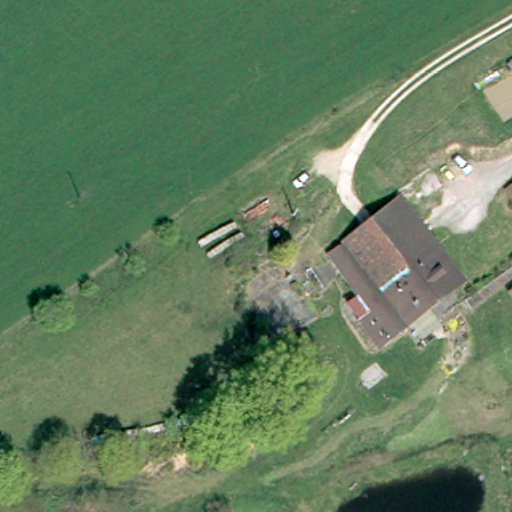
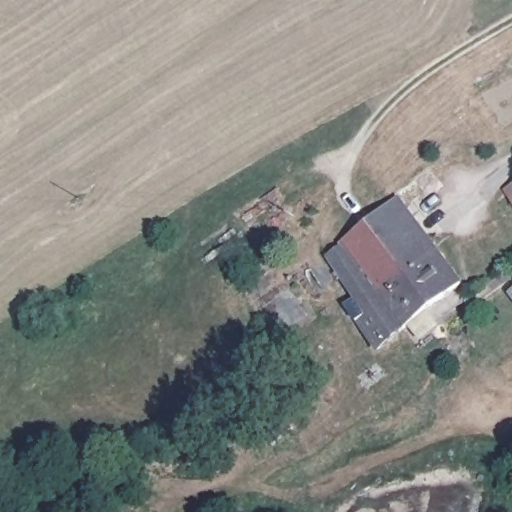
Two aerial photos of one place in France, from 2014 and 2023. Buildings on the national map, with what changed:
unchanged [(347,302),(355,296),(322,254),(414,180),(424,193),(408,206),(466,280),(382,347),(347,302)]
unchanged [(512,185),(512,200),(505,190),(512,185)]
unchanged [(512,259),(512,271),(476,300),(471,293),(512,259)]
unchanged [(509,291),(512,289),(512,296),(509,291)]
unchanged [(249,439),(243,430),(268,413),(275,424),(281,433),(256,450),(249,439)]

